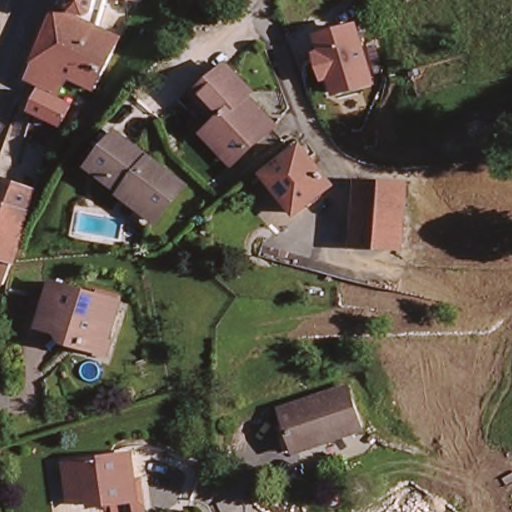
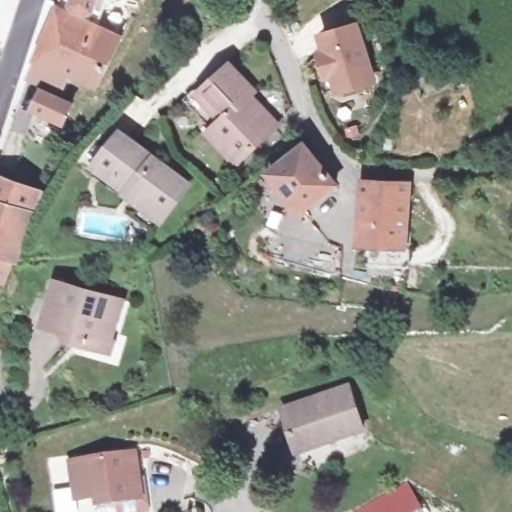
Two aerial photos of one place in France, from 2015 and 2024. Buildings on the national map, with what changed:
unchanged [(101,26),(126,37),(98,94),(72,81),(65,99),(75,103),(65,127),(30,113),(42,88),(27,81),(57,4),(68,9),(71,0),(109,0),(101,26)]
unchanged [(142,2),(127,0),(142,0),(142,2)]
unchanged [(335,98),(330,81),(323,84),(314,54),(322,52),(317,34),(361,22),(380,85),(335,98)]
unchanged [(255,92),(284,121),(249,157),(197,105),(237,63),(260,86),(255,92)]
unchanged [(92,177),(99,168),(123,134),(162,161),(189,179),(162,218),(144,206),(131,198),(128,202),(92,177)]
unchanged [(317,155),(325,164),(340,175),(347,178),(297,216),(269,176),(308,145),(317,155)]
unchanged [(0,178),(2,175),(48,198),(27,243),(12,272),(0,267),(0,178)]
unchanged [(404,250),(357,245),(365,182),(413,189),(404,250)]
unchanged [(111,343),(96,338),(92,350),(75,343),(66,329),(47,323),(59,279),(126,299),(111,343)]
unchanged [(371,428),(338,438),(337,433),(299,445),(287,404),(357,384),(371,428)]
unchanged [(141,507),(111,510),(109,502),(77,505),(75,470),(139,464),(141,507)]
new [(356,512),(406,480),(422,504),(409,512),(356,512)]

